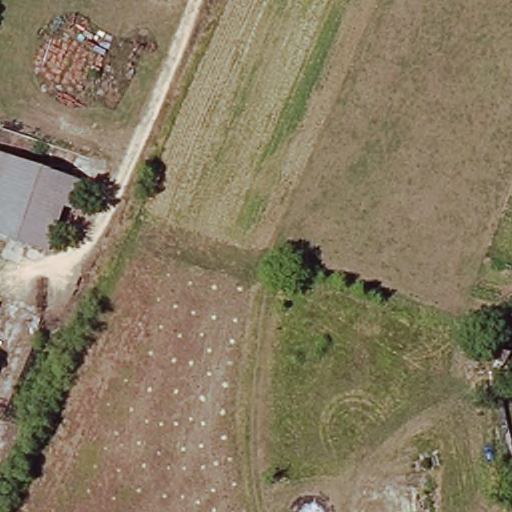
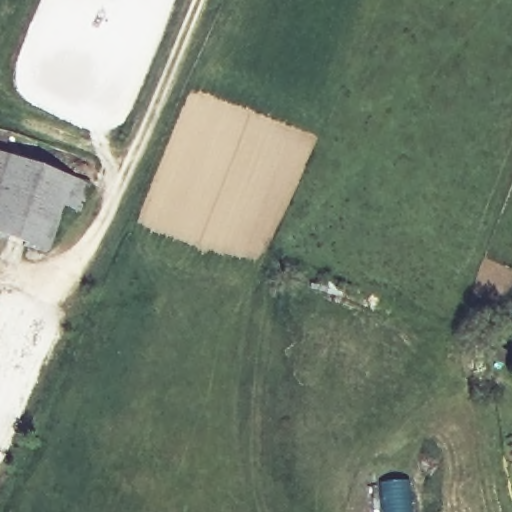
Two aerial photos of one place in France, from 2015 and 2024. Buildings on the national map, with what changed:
unchanged [(89,183),(78,215),(61,209),(46,252),(0,236),(0,155),(89,183)]

